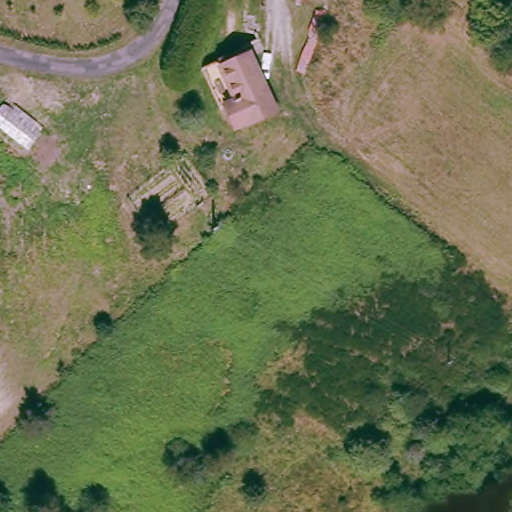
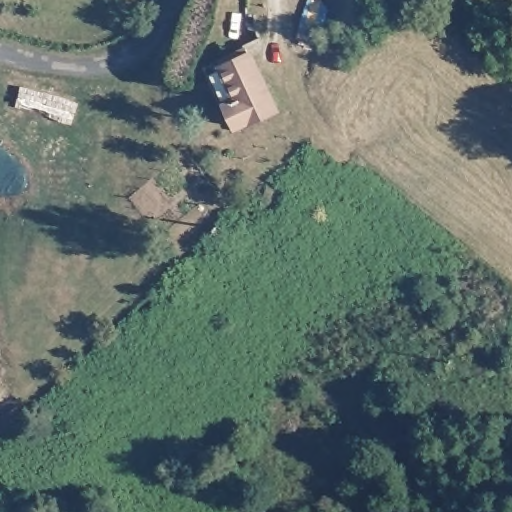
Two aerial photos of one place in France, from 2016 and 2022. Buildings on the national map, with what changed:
unchanged [(292,2),(292,0),(302,0),(292,2)]
unchanged [(281,117),(234,138),(218,106),(228,102),(225,94),(215,99),(203,72),(215,66),(253,53),(281,117)]

